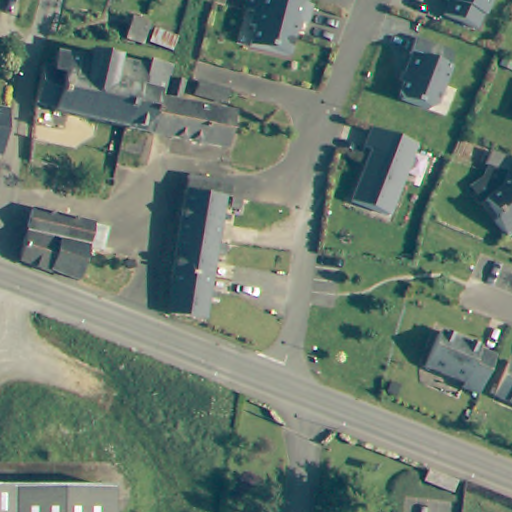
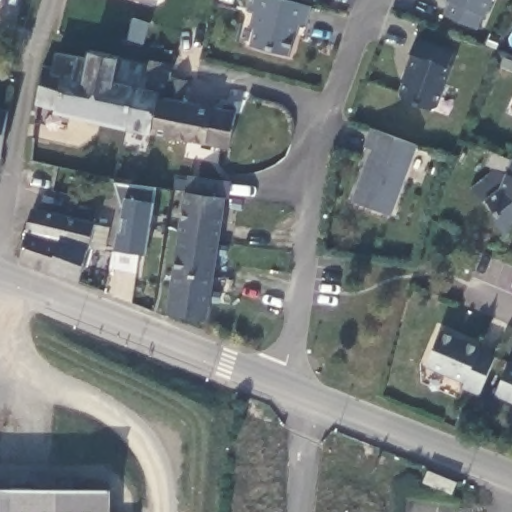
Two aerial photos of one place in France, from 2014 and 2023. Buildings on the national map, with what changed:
unchanged [(246,11),(245,11),(248,0),(278,0),(301,5),(308,7),(304,26),(295,23),(287,57),(249,48),(254,28),(249,27),(252,13),(246,11)]
unchanged [(447,0),(487,0),(483,11),(481,10),(475,24),(442,12),(447,0)]
unchanged [(135,25),(153,31),(147,50),(127,47),(135,25)]
unchanged [(453,53),(447,67),(450,68),(435,107),(428,110),(402,100),(399,94),(407,73),(405,72),(411,55),(408,54),(415,38),(453,53)]
unchanged [(174,136),(154,131),(129,125),(39,103),(40,66),(52,66),(53,53),(85,56),(87,49),(114,56),(152,66),(154,59),(179,65),(176,76),(191,81),(184,102),(234,114),(227,150),(174,136)]
unchanged [(0,132),(0,107),(4,107),(0,132)]
unchanged [(367,170),(368,167),(370,162),(366,161),(371,147),(368,146),(375,127),(392,133),(416,141),(388,219),(351,205),(363,169),(367,170)]
unchanged [(492,220),(493,214),(482,198),(497,187),(509,157),(512,159),(512,228),(503,234),(492,220)]
unchanged [(191,172),(227,180),(225,196),(225,197),(208,319),(171,314),(189,189),(191,172)]
new [(114,250),(122,209),(115,183),(157,188),(154,202),(146,254),(140,253),(136,274),(110,269),(114,250)]
unchanged [(32,210),(112,228),(107,251),(91,247),(81,279),(52,268),(50,273),(18,261),(32,210)]
unchanged [(440,327),(478,344),(477,347),(493,354),(478,389),(462,382),(463,377),(425,360),(440,327)]
unchanged [(503,359),(512,363),(512,401),(490,391),(503,359)]
unchanged [(431,464),(458,475),(452,488),(425,477),(431,464)]
unchanged [(112,512),(0,512),(0,488),(112,486),(112,512)]

